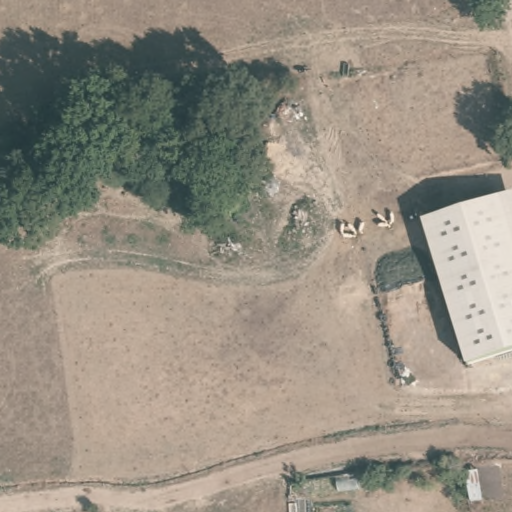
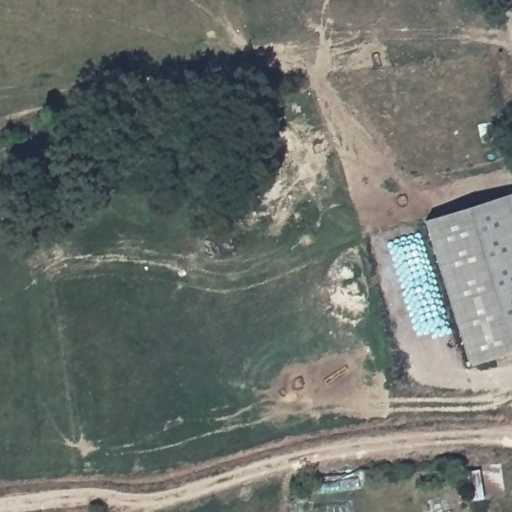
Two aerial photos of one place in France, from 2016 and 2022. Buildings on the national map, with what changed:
unchanged [(467,366),(425,220),(512,195),(512,352),(467,366)]

